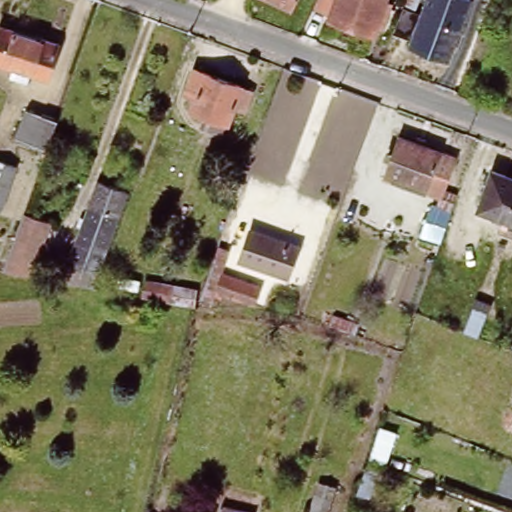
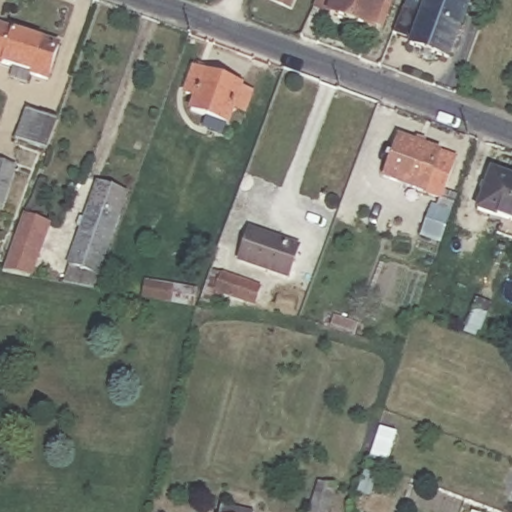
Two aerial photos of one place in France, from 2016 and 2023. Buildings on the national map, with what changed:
unchanged [(295,9),(274,0),(299,0),(295,9)]
unchanged [(379,40),(335,23),(337,21),(322,15),(328,0),(395,0),(379,40)]
unchanged [(449,60),(407,45),(424,0),(472,0),(449,60)]
unchanged [(56,47),(47,77),(0,64),(0,32),(56,47)]
unchanged [(242,92),(229,128),(192,115),(197,101),(190,99),(197,77),(242,92)]
unchanged [(56,122),(46,150),(15,139),(26,112),(56,122)]
unchanged [(452,162),(437,202),(380,182),(395,142),(452,162)]
unchanged [(512,224),(477,211),(492,174),(512,181),(512,224)]
unchanged [(68,269),(90,211),(99,186),(127,197),(118,222),(96,279),(68,269)]
unchanged [(52,220),(33,274),(5,267),(25,211),(52,220)]
unchanged [(294,247),(285,275),(237,261),(245,232),(294,247)]
unchanged [(262,286),(255,307),(215,293),(211,306),(200,302),(218,249),(230,252),(222,273),(262,286)]
unchanged [(487,313),(477,337),(464,332),(473,307),(487,313)]
unchanged [(394,432),(381,467),(369,462),(380,427),(394,432)]
unchanged [(399,473),(395,485),(380,480),(385,468),(399,473)]
unchanged [(329,512),(310,512),(315,495),(332,502),(329,512)]

